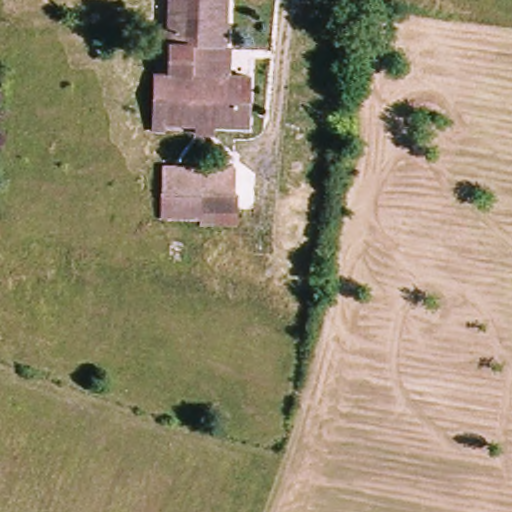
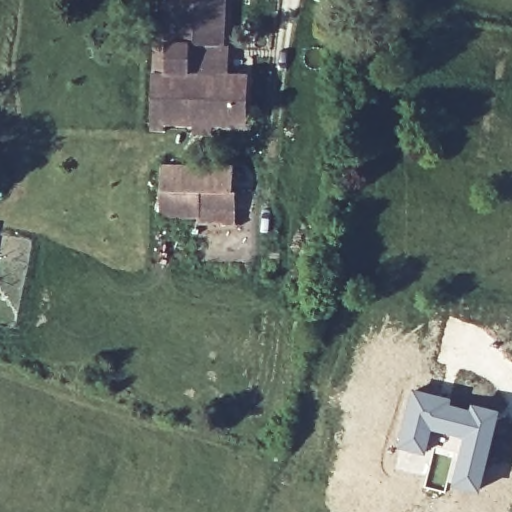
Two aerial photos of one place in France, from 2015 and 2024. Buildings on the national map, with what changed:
unchanged [(235,77),(230,125),(159,120),(165,0),(221,0),(216,75),(235,77)]
unchanged [(196,223),(157,222),(158,191),(158,167),(228,168),(228,192),(236,192),(236,223),(196,223)]
new [(411,387),(453,396),(471,400),(502,408),(480,492),(449,485),(461,437),(434,431),(427,455),(410,451),(408,456),(405,456),(403,463),(413,466),(411,472),(394,467),(411,387)]

